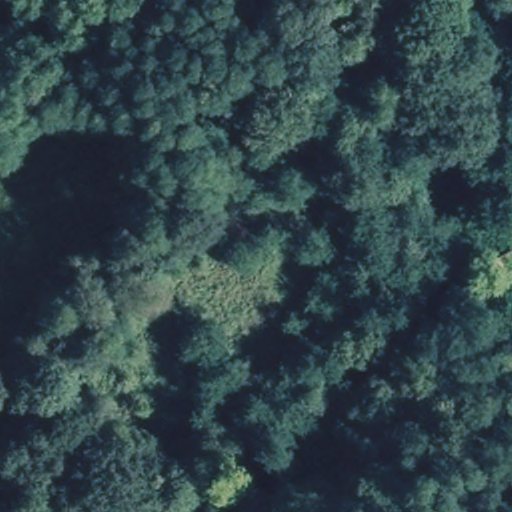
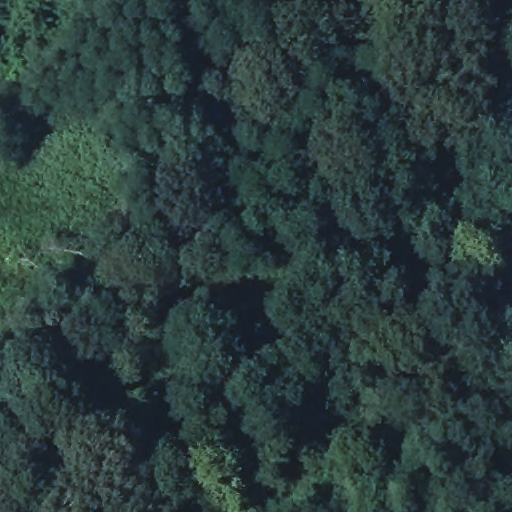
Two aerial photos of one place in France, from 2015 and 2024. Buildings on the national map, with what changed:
unchanged [(512,287),(497,254),(512,247),(512,287)]

